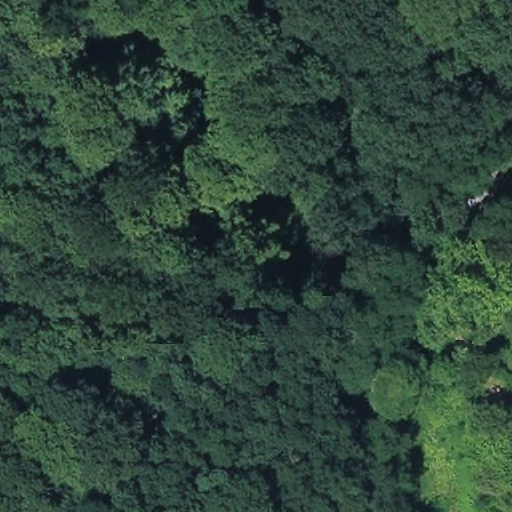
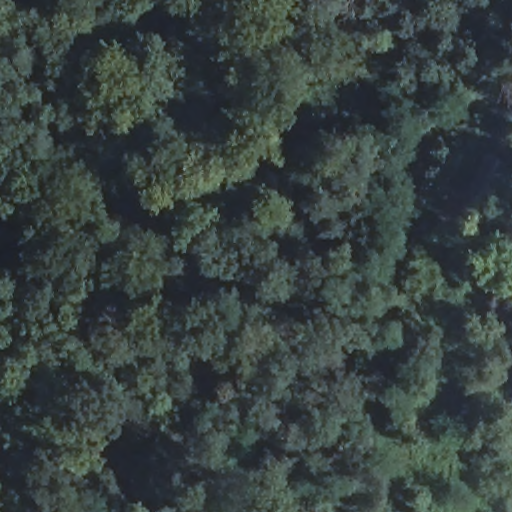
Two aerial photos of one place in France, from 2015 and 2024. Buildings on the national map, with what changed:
unchanged [(448,239),(432,229),(449,195),(465,205),(487,161),(506,172),(478,230),(468,251),(448,239)]

